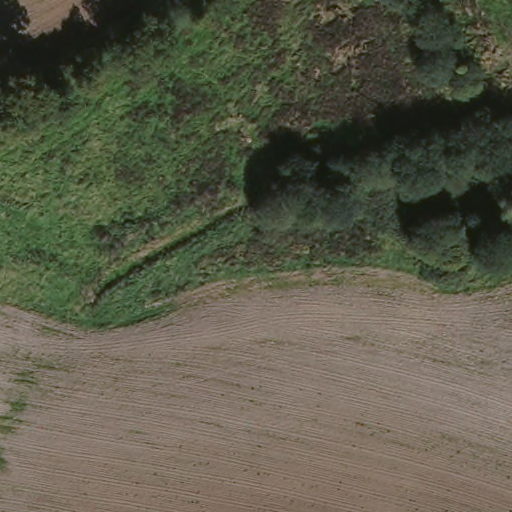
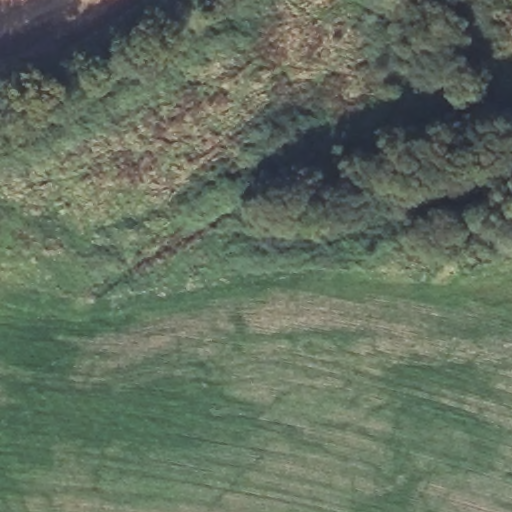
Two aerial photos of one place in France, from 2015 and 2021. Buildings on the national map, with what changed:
[]

